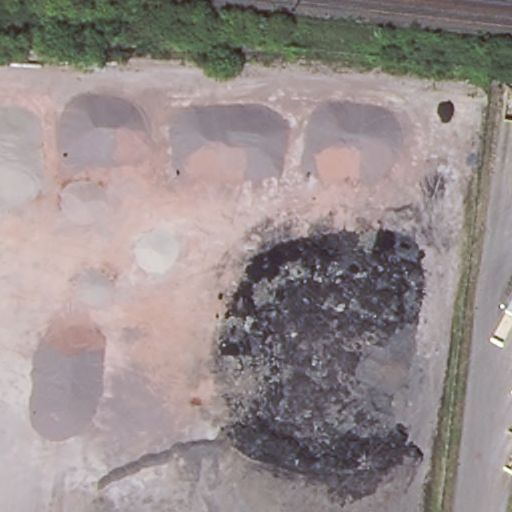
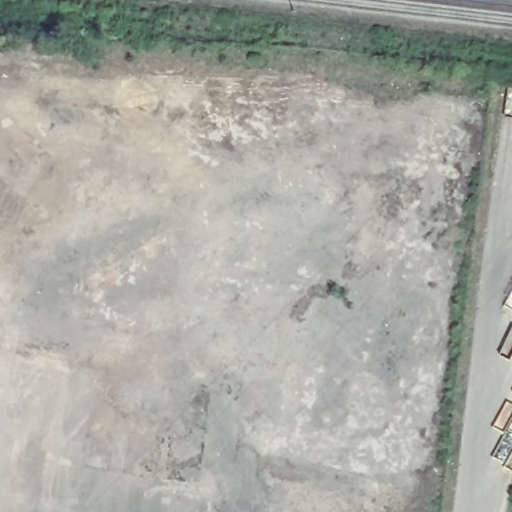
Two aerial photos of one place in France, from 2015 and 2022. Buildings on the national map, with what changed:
[]

